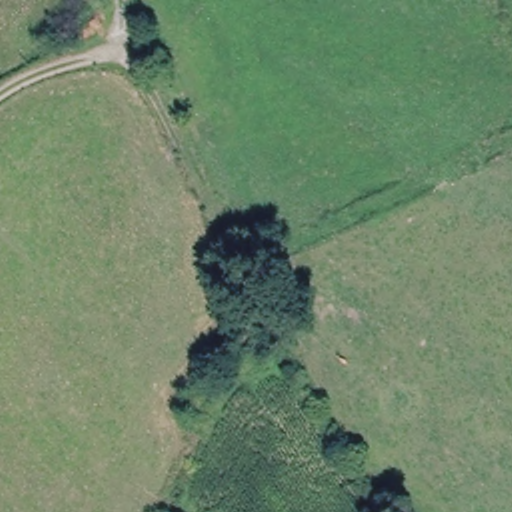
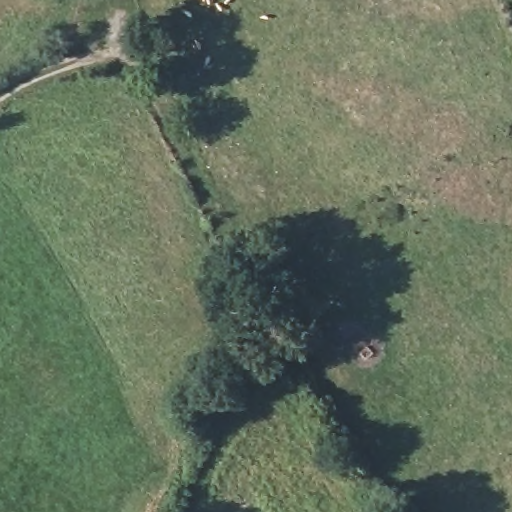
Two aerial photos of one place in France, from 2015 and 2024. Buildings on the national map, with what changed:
[]

